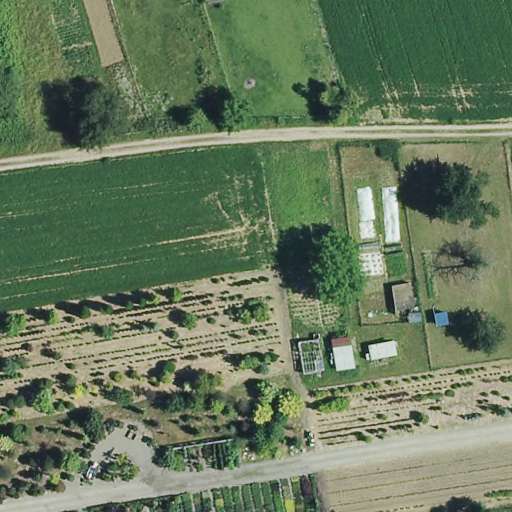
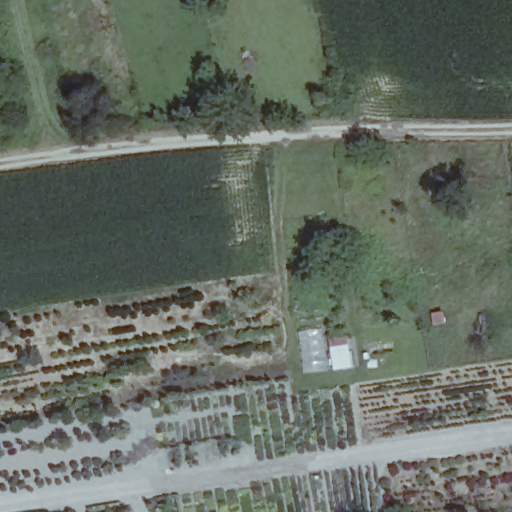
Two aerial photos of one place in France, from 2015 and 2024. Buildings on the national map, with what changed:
unchanged [(369,359),(366,343),(392,339),(396,357),(369,359)]
unchanged [(335,367),(330,346),(351,342),(354,367),(335,367)]

